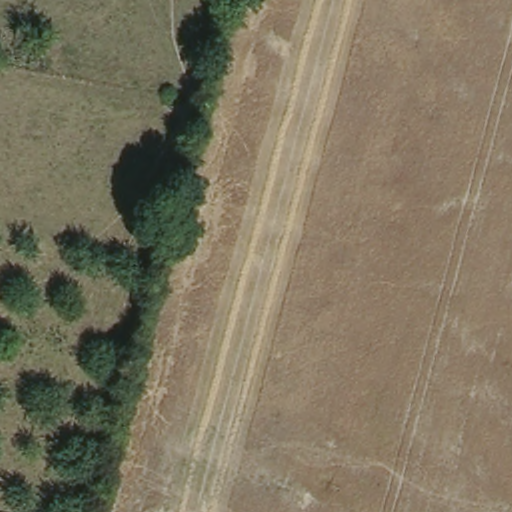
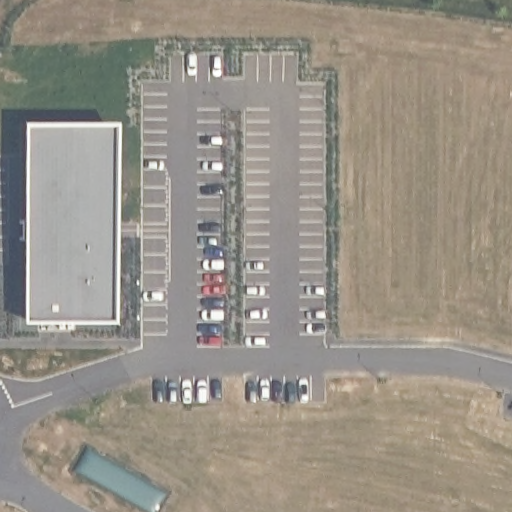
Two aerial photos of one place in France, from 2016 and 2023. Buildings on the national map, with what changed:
new [(114,128),(113,325),(24,326),(25,130),(114,128)]

